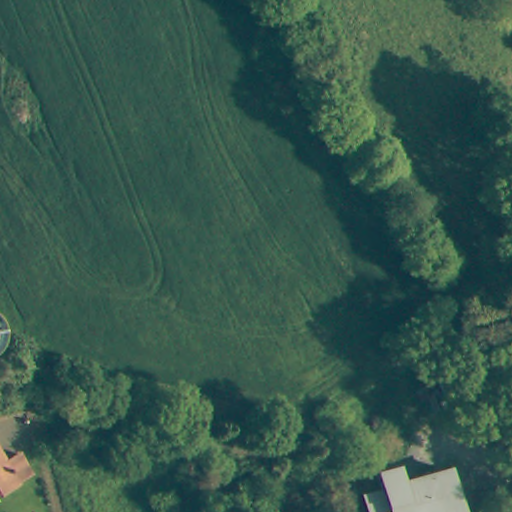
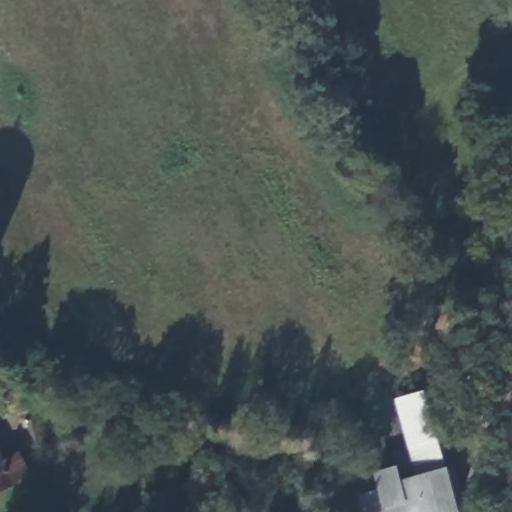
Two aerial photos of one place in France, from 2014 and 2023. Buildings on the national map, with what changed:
new [(427,389),(448,468),(417,476),(397,397),(427,389)]
unchanged [(17,455),(24,466),(19,469),(22,476),(1,489),(5,496),(0,499),(0,441),(11,458),(17,455)]
unchanged [(364,512),(359,495),(380,490),(375,471),(398,465),(402,480),(448,468),(460,512),(364,512)]

